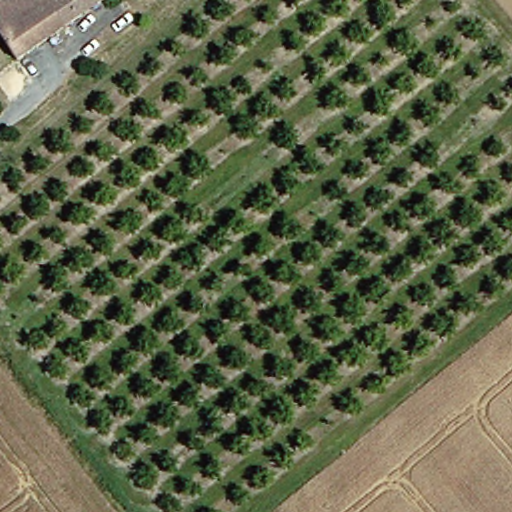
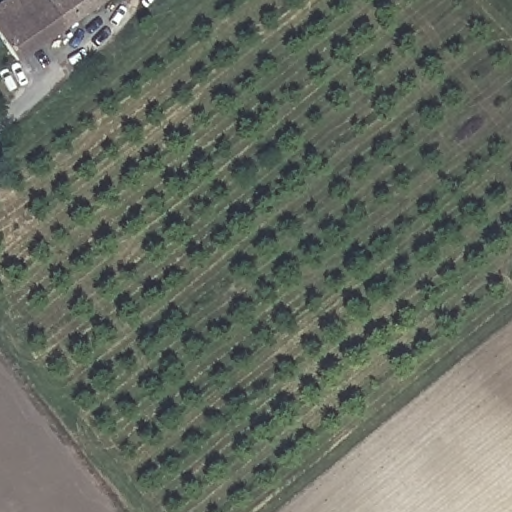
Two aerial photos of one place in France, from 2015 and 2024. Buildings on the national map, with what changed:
unchanged [(27,66),(0,26),(0,11),(15,0),(51,0),(52,2),(55,0),(118,0),(27,66)]

